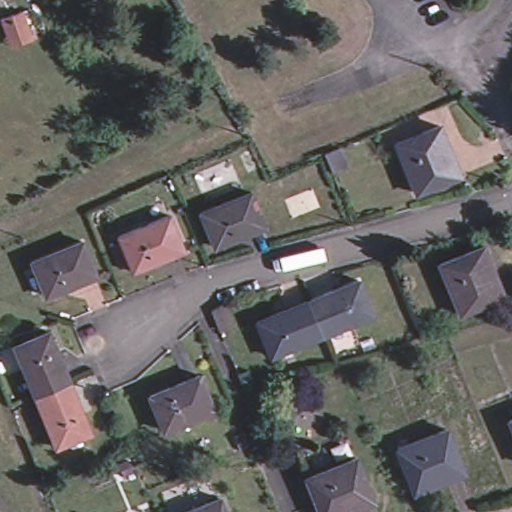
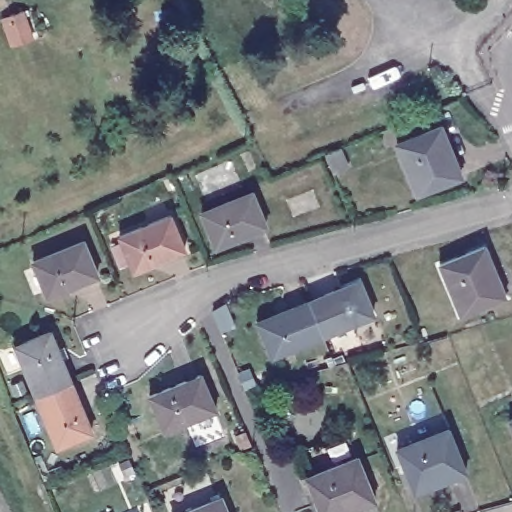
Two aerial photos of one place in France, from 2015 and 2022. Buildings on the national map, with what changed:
unchanged [(30,24),(10,31),(5,17),(26,10),(30,24)]
unchanged [(462,176),(417,194),(397,146),(441,127),(462,176)]
unchanged [(264,226),(215,244),(202,209),(251,189),(264,226)]
unchanged [(118,236),(175,215),(190,251),(135,270),(118,236)]
unchanged [(100,276),(50,297),(36,262),(87,242),(100,276)]
unchanged [(504,295),(460,313),(440,265),(485,246),(504,295)]
unchanged [(322,336),(309,301),(360,280),(374,314),(322,336)]
unchanged [(322,336),(272,357),(258,322),(309,301),(322,336)]
unchanged [(20,345),(53,331),(74,382),(40,396),(20,345)]
unchanged [(213,411),(163,431),(149,397),(200,377),(213,411)]
unchanged [(95,433),(60,447),(40,396),(74,382),(95,433)]
unchanged [(510,422),(512,421),(512,427),(510,422)]
unchanged [(465,470),(415,490),(398,446),(448,427),(465,470)]
unchanged [(347,512),(320,512),(307,476),(356,457),(374,501),(347,512)]
unchanged [(192,512),(225,499),(230,512),(192,512)]

